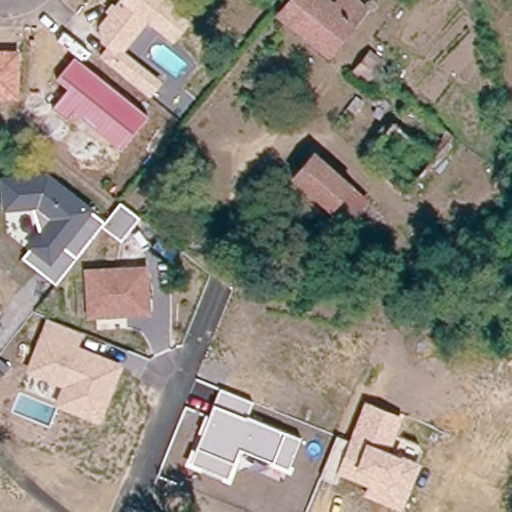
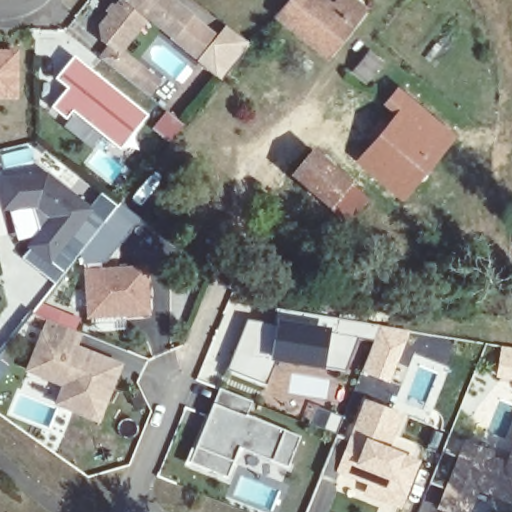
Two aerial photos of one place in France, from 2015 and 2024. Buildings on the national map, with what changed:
unchanged [(97,26),(118,0),(173,0),(193,17),(172,41),(145,21),(124,50),(164,81),(149,99),(98,57),(105,45),(100,41),(97,26)]
unchanged [(359,0),(367,6),(333,54),(275,16),(287,0),(359,0)]
new [(216,35),(225,25),(249,45),(218,80),(172,41),(193,17),(216,35)]
new [(368,48),(386,63),(366,86),(348,71),(368,48)]
unchanged [(18,51),(19,99),(0,99),(0,51),(18,51)]
unchanged [(67,89),(55,80),(73,58),(147,116),(119,151),(70,112),(66,118),(53,108),(67,89)]
new [(393,113),(381,103),(398,84),(458,135),(402,202),(354,161),(393,113)]
unchanged [(290,169),(309,143),(349,175),(329,199),(290,169)]
unchanged [(29,249),(26,247),(39,233),(33,209),(2,211),(0,181),(0,174),(47,171),(94,208),(91,210),(105,222),(120,202),(140,218),(120,242),(101,227),(56,286),(22,258),(29,249)]
unchanged [(83,269),(146,266),(152,317),(87,320),(83,269)]
new [(271,324),(274,310),(378,326),(373,340),(357,337),(343,374),(321,370),(275,363),(265,386),(227,371),(247,321),(271,324)]
unchanged [(46,321),(83,334),(79,346),(124,363),(101,423),(54,405),(62,386),(25,372),(46,321)]
new [(512,349),(512,378),(500,377),(503,349),(512,349)]
unchanged [(195,450),(202,434),(197,433),(206,414),(210,414),(214,404),(220,389),(253,402),(247,415),(300,437),(288,468),(240,449),(228,480),(185,465),(191,449),(195,450)]
unchanged [(337,434),(348,439),(363,401),(402,416),(388,449),(402,455),(420,463),(401,510),(364,494),(368,486),(339,475),(336,483),(321,476),(337,434)]
new [(466,451),(471,438),(496,447),(493,454),(509,460),(512,452),(512,493),(483,482),(475,502),(450,493),(454,484),(435,477),(448,444),(466,451)]

